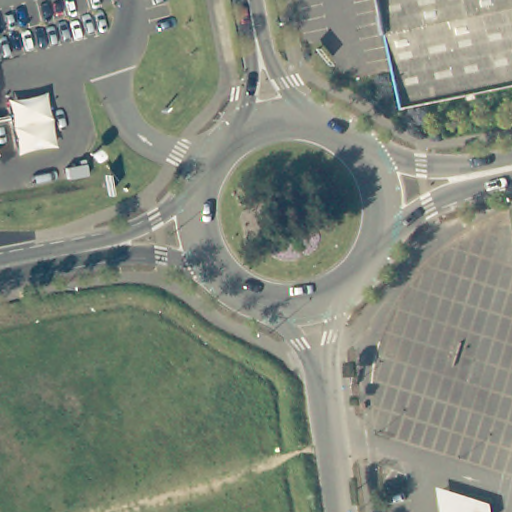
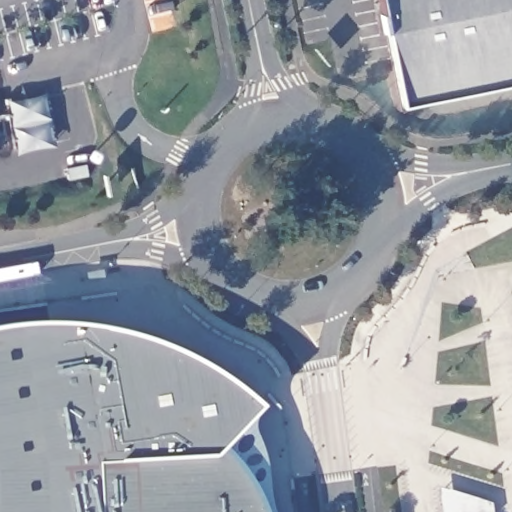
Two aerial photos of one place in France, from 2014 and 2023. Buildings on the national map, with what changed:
unchanged [(380,0),(512,0),(512,86),(403,108),(380,0)]
new [(255,437),(261,451),(266,474),(267,496),(270,509),(270,512),(0,512),(0,333),(33,327),(81,328),(130,337),(186,359),(224,381),(260,409),(253,429),(255,437)]
unchanged [(433,485),(490,504),(490,512),(437,512),(433,485)]

